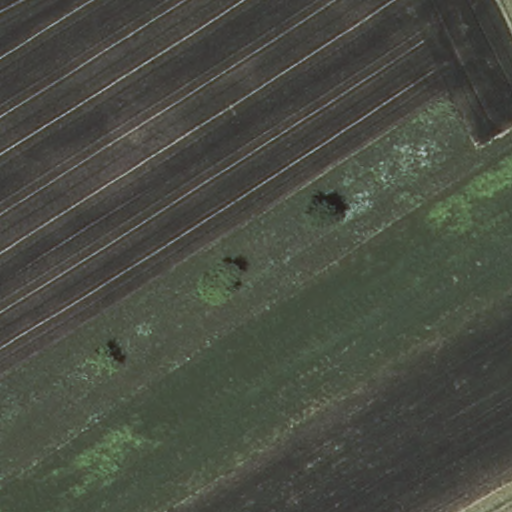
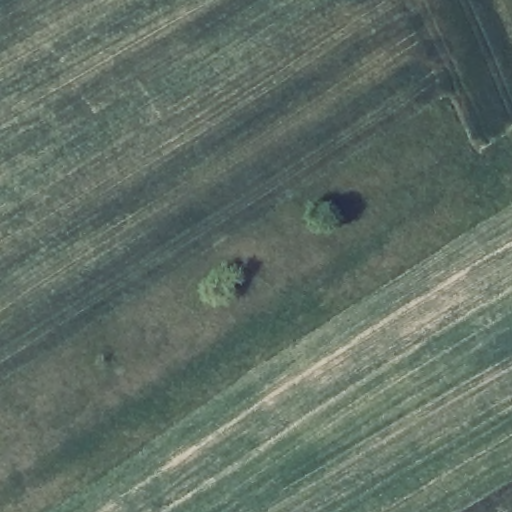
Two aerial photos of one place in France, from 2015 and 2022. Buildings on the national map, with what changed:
[]

